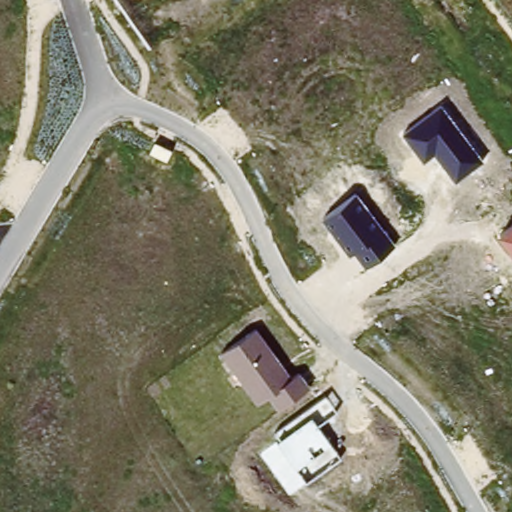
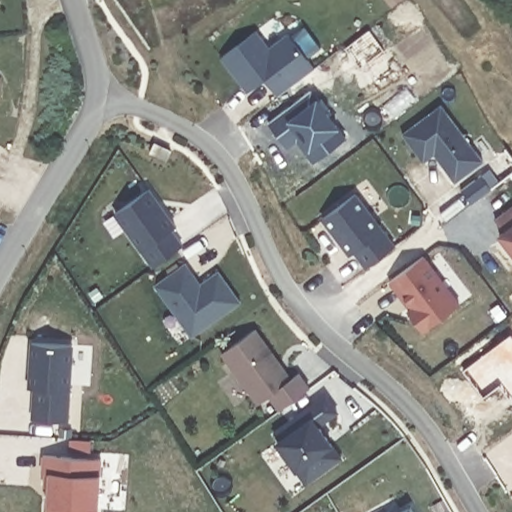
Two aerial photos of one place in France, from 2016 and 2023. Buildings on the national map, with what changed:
new [(222,57),(256,31),(270,51),(290,32),(315,67),(278,95),(266,77),(246,92),(222,57)]
unchanged [(403,135),(442,106),(483,161),(455,182),(435,155),(424,162),(403,135)]
new [(150,189),(175,227),(170,230),(182,247),(153,267),(113,214),(150,189)]
unchanged [(356,195),(395,247),(366,268),(355,254),(350,257),(322,221),(356,195)]
unchanged [(512,254),(497,236),(512,225),(512,254)]
new [(406,311),(409,308),(388,282),(424,257),(460,303),(424,332),(406,311)]
new [(155,285),(186,262),(200,283),(219,271),(240,302),(191,337),(155,285)]
unchanged [(257,331),(292,378),(300,373),(310,388),(279,411),(270,398),(258,405),(222,355),(257,331)]
new [(34,388),(28,388),(31,342),(72,345),(70,392),(69,422),(31,419),(34,388)]
unchanged [(298,472),(275,442),(281,437),(275,429),(326,396),(338,412),(320,427),(333,446),(342,458),(305,485),(298,472)]
new [(46,506),(47,488),(41,487),(43,473),(40,472),(40,455),(101,459),(100,475),(98,507),(87,507),(87,512),(46,512),(46,506)]
new [(411,507),(414,512),(401,512),(411,507)]

